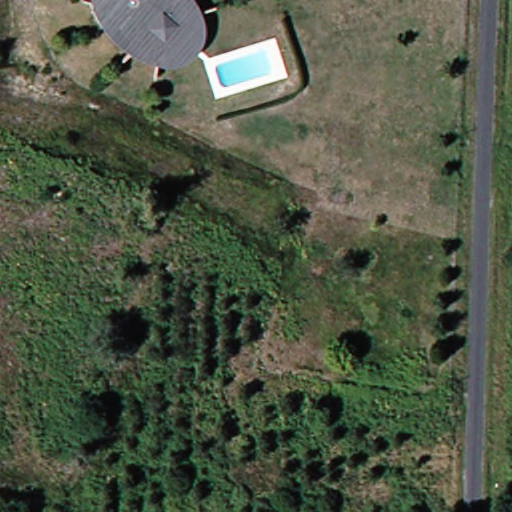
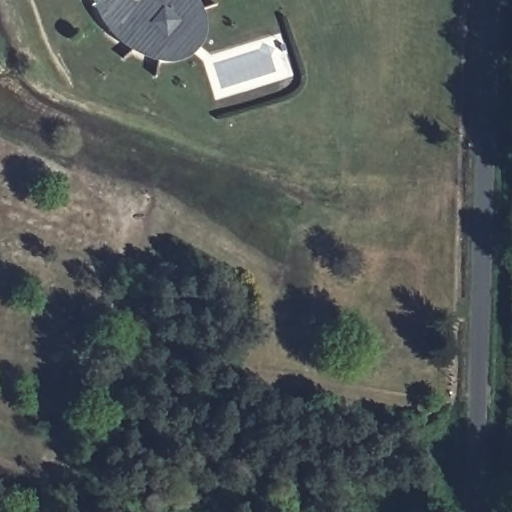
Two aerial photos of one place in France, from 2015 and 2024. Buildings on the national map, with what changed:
unchanged [(182,8),(187,16),(190,28),(184,42),(177,51),(164,58),(154,61),(134,56),(102,25),(107,20),(85,0),(181,0),(186,4),(182,8)]

